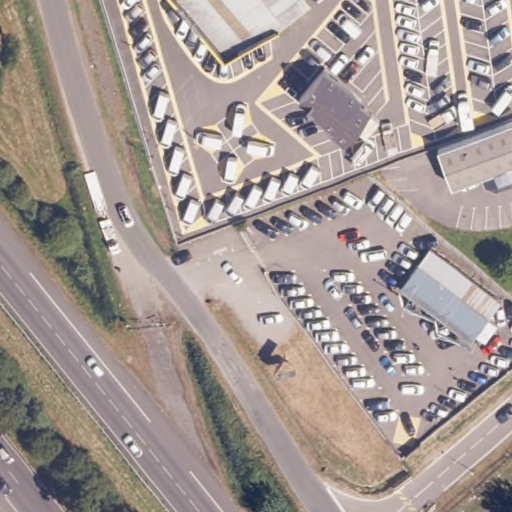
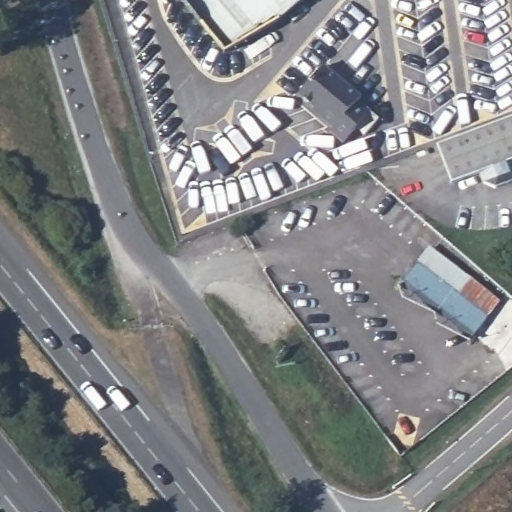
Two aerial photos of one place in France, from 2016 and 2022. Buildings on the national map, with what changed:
unchanged [(297,12),(252,57),(202,0),(307,0),(297,11),(297,12)]
unchanged [(360,86),(356,92),(368,102),(343,134),(329,123),(332,120),(299,87),(325,57),(360,86)]
unchanged [(512,158),(492,165),(494,176),(485,192),(474,197),(463,187),(460,176),(433,185),(421,145),(504,117),(512,138),(512,158)]
unchanged [(465,340),(408,293),(398,285),(405,276),(421,254),(492,311),(482,328),(487,332),(474,350),(468,343),(465,340)]

